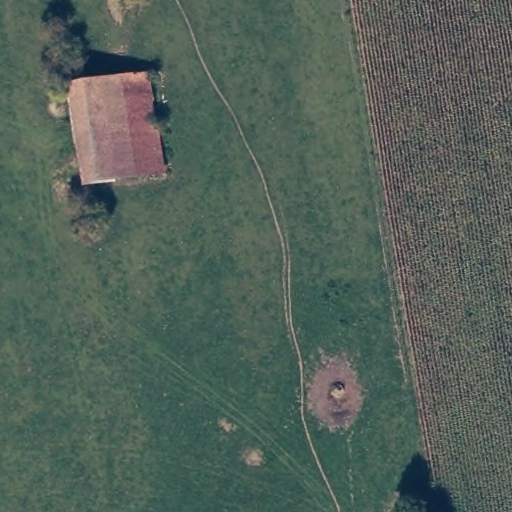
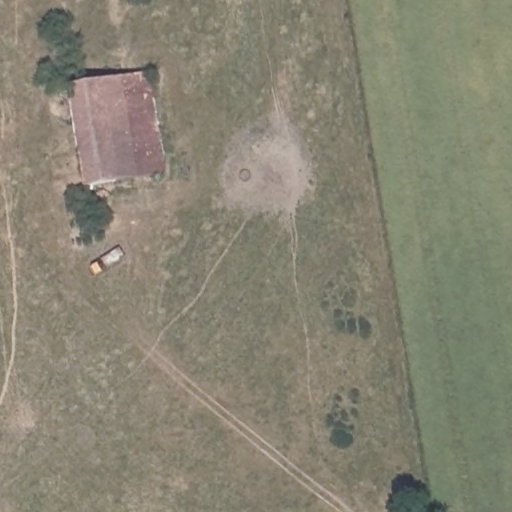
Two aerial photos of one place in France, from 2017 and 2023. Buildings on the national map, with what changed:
unchanged [(101,82),(145,76),(160,175),(115,182),(101,82)]
unchanged [(83,186),(70,87),(101,82),(115,182),(83,186)]

